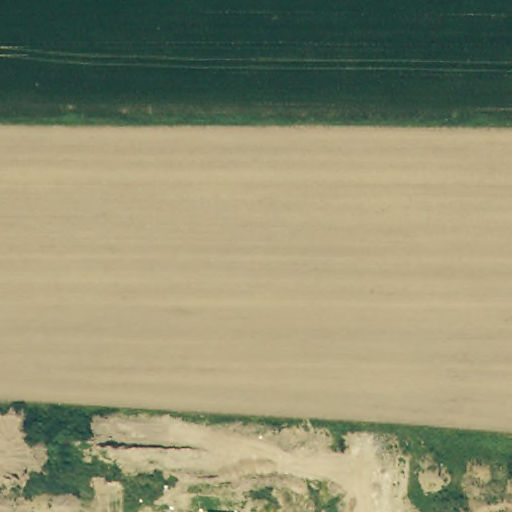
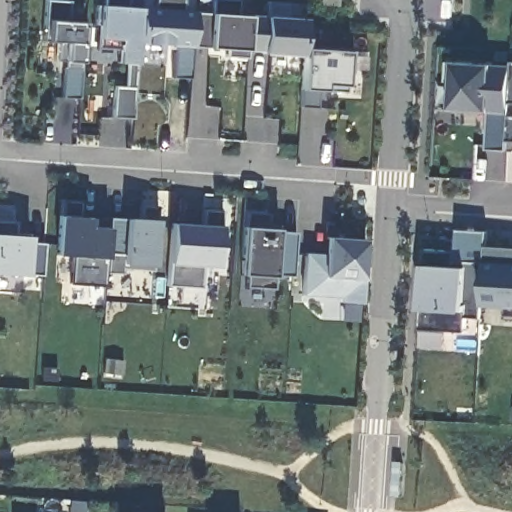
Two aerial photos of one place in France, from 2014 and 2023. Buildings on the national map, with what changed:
new [(62,0),(70,1),(69,21),(85,23),(80,99),(62,98),(65,61),(57,61),(58,42),(43,41),(45,0),(62,0)]
new [(114,86),(125,86),(126,64),(118,63),(119,49),(97,48),(98,25),(95,25),(96,6),(104,6),(104,0),(129,0),(128,8),(141,9),(139,43),(137,65),(136,88),(133,119),(112,118),(114,86)]
new [(154,0),(184,0),(183,11),(196,12),(193,48),(191,79),(172,78),(174,46),(139,43),(141,9),(153,9),(154,0)]
new [(226,57),(226,50),(193,48),(196,12),(211,14),(212,0),(238,0),(237,16),(251,16),(249,51),(248,59),(226,57)]
new [(347,73),(345,93),(325,91),(322,91),(316,108),(300,106),(301,89),(303,56),(264,54),(249,51),(251,16),(269,17),(266,1),(286,3),(290,18),(305,19),(304,50),(347,52),(353,53),(351,73),(347,73)]
new [(512,66),(512,74),(508,141),(507,151),(487,150),(489,112),(452,109),(454,82),(447,81),(448,61),(512,66)]
new [(512,141),(508,141),(512,74),(512,141)]
new [(60,199),(80,201),(79,217),(109,219),(105,273),(104,287),(69,285),(71,256),(56,255),(60,199)]
new [(109,219),(109,218),(127,219),(127,223),(139,223),(140,205),(158,206),(153,271),(123,269),(123,274),(105,273),(109,219)]
new [(171,223),(191,225),(191,230),(201,230),(202,209),(222,210),(218,266),(203,265),(202,288),(167,286),(171,223)]
new [(268,228),(276,229),(276,232),(295,233),(292,277),(273,277),(272,289),(245,288),(251,275),(242,275),(244,226),(247,227),(244,212),(266,214),(268,228)]
new [(42,275),(27,274),(27,276),(0,274),(0,220),(16,222),(19,236),(31,236),(30,244),(44,244),(42,275)]
new [(446,251),(456,251),(457,230),(487,232),(486,247),(485,262),(455,260),(454,260),(454,267),(445,266),(446,251)]
new [(366,240),(361,304),(338,303),(338,298),(301,296),(304,253),(324,254),(325,237),(366,240)]
new [(489,247),(512,248),(512,307),(482,305),(485,262),(486,247),(489,247)]
new [(425,249),(446,251),(445,266),(454,267),(454,260),(455,260),(485,262),(482,305),(482,319),(466,318),(465,333),(420,330),(425,249)]

